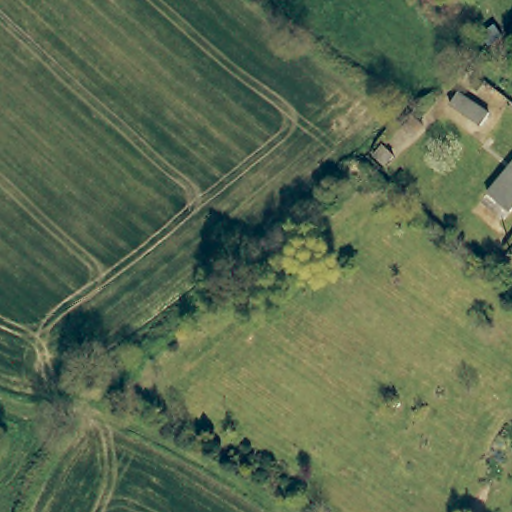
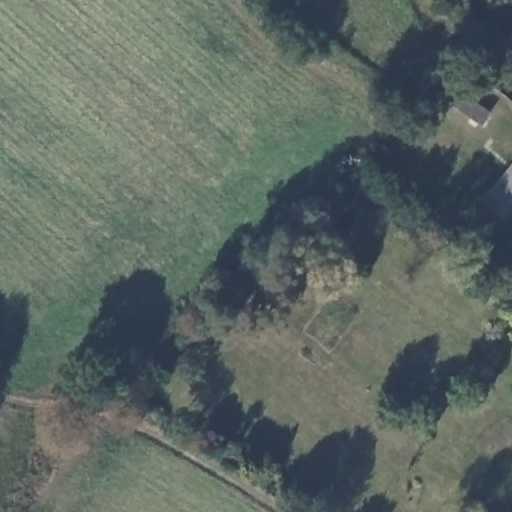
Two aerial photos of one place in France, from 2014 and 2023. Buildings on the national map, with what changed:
unchanged [(472,86),(466,82),(470,77),(476,81),(472,86)]
unchanged [(499,121),(491,132),(461,112),(468,101),(499,121)]
unchanged [(490,195),(512,169),(512,213),(511,214),(490,195)]

